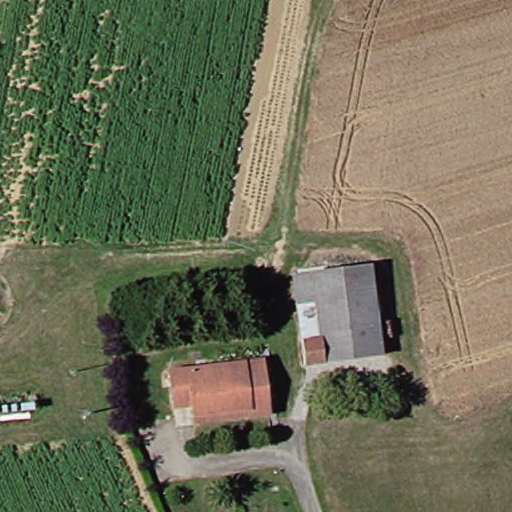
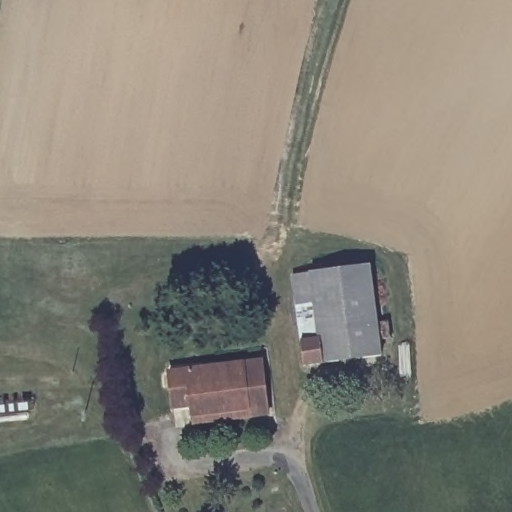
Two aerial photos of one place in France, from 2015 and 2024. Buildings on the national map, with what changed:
unchanged [(371,268),(377,324),(391,323),(392,341),(380,342),(381,355),(306,364),(304,343),(325,340),(318,272),(371,268)]
unchanged [(318,272),(325,340),(304,343),(296,276),(318,272)]
unchanged [(190,412),(190,405),(169,406),(168,370),(264,365),(267,422),(247,422),(191,424),(190,412)]

